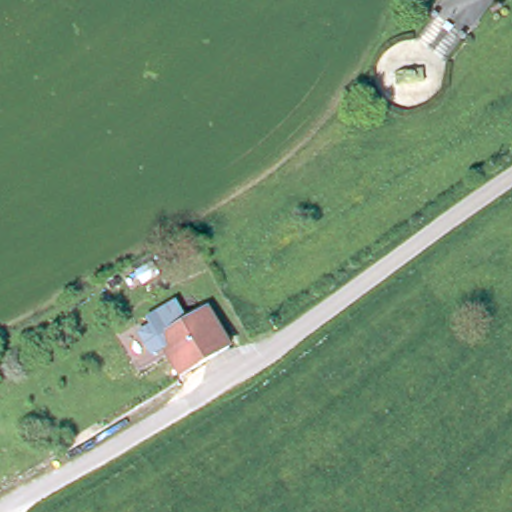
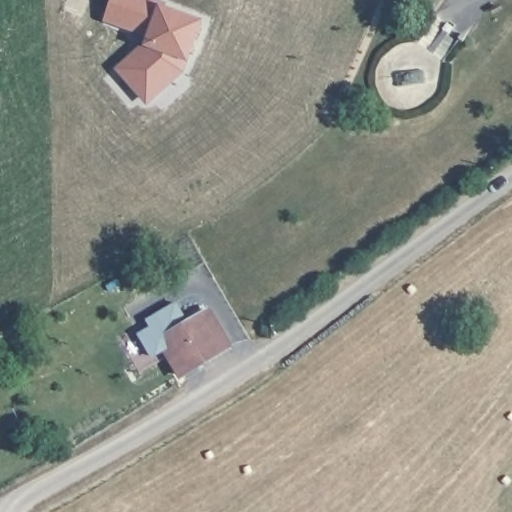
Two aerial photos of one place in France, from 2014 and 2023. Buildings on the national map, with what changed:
new [(115,69),(145,39),(102,22),(110,0),(159,0),(207,17),(193,58),(185,72),(146,105),(115,69)]
unchanged [(157,357),(147,340),(159,332),(154,325),(183,309),(186,314),(191,322),(212,309),(235,347),(186,376),(170,349),(157,357)]

